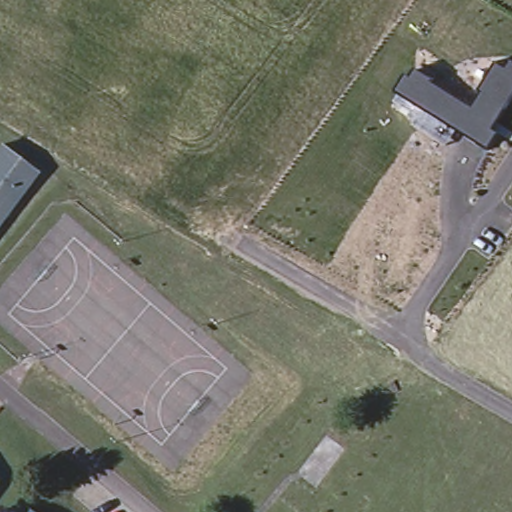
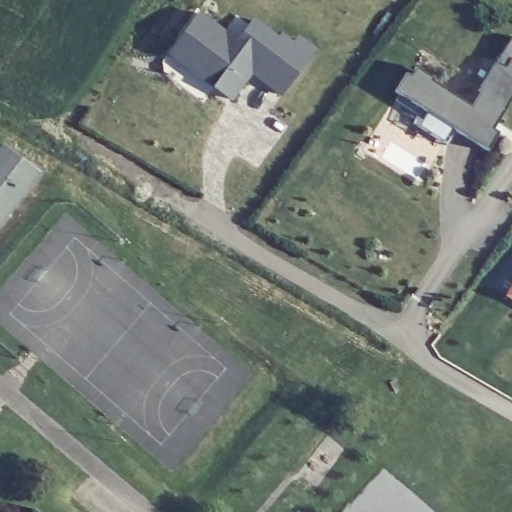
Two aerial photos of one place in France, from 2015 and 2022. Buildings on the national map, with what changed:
new [(280,97),(250,76),(230,103),(165,54),(198,11),(235,40),(252,19),(277,37),(280,32),(292,42),(297,36),(316,49),(280,97)]
unchanged [(512,100),(495,131),(497,133),(487,151),(395,96),(406,74),(411,77),(415,69),(436,80),(432,85),(472,108),(482,92),(477,89),(495,62),(507,67),(512,60),(512,100)]
unchanged [(2,146),(39,174),(0,224),(0,148),(2,146)]
unchanged [(37,512),(33,512),(35,511),(37,512)]

